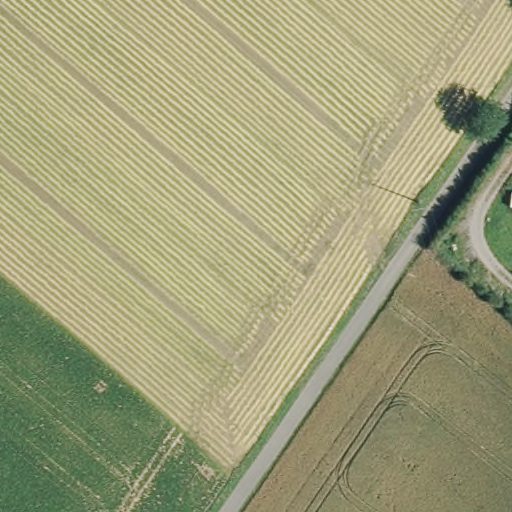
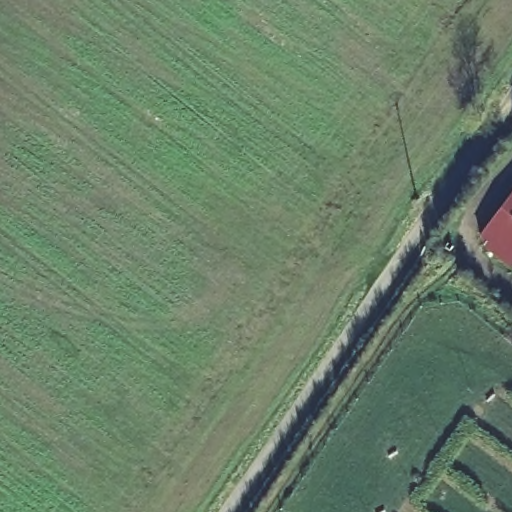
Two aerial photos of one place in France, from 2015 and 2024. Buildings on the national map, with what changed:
new [(512,196),(512,267),(508,271),(477,242),(499,211),(512,196)]

